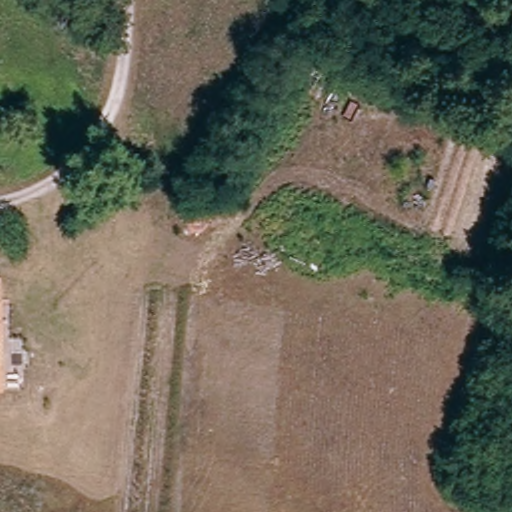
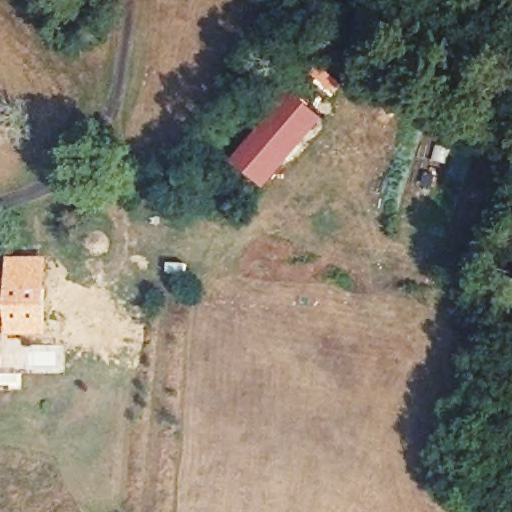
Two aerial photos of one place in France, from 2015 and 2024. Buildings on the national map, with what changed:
new [(268,190),(235,161),(246,149),(250,152),(252,150),(249,148),(291,99),(300,105),(304,100),(327,121),(268,190)]
new [(50,258),(50,335),(8,335),(10,258),(50,258)]

